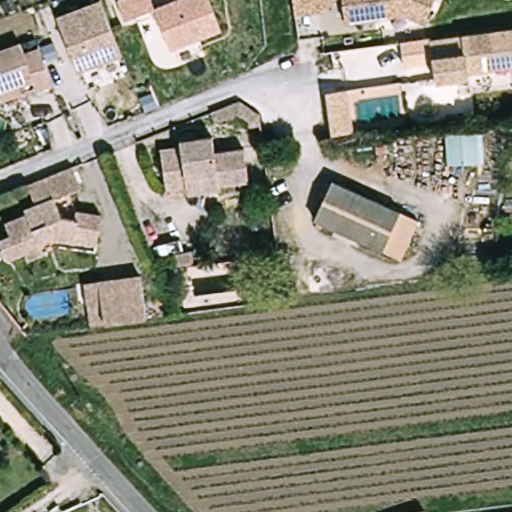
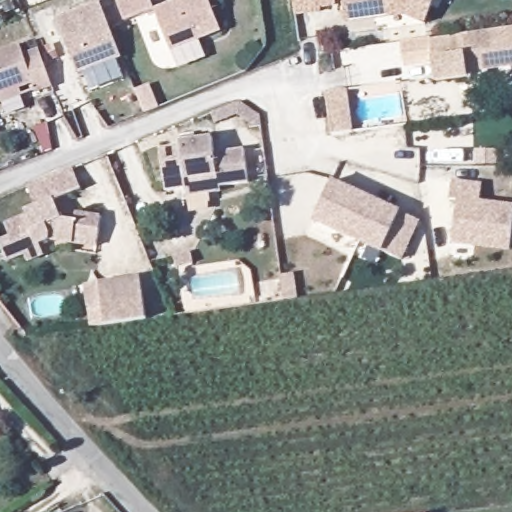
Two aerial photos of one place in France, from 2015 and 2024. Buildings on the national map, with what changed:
unchanged [(121,55),(77,72),(55,17),(99,0),(121,55)]
unchanged [(154,9),(124,20),(117,1),(120,0),(151,0),(154,9)]
unchanged [(220,30),(170,50),(154,9),(178,0),(209,0),(220,30)]
unchanged [(332,3),(317,5),(318,10),(291,13),(290,0),(332,0),(332,3)]
unchanged [(403,13),(379,17),(343,22),(340,0),(431,0),(425,15),(422,23),(403,13)]
unchanged [(512,60),(464,66),(464,71),(432,75),(426,35),(512,25),(512,60)]
unchanged [(5,101),(2,95),(0,96),(0,52),(25,43),(28,54),(43,48),(57,86),(40,91),(37,82),(25,87),(27,93),(5,101)]
unchanged [(347,89),(353,131),(332,134),(327,92),(347,89)]
unchanged [(210,113),(239,102),(260,115),(261,126),(250,127),(249,121),(238,114),(215,123),(210,113)]
demolished [(451,169),(449,133),(480,131),(485,164),(451,169)]
unchanged [(185,147),(184,141),(217,137),(219,153),(249,149),(253,182),(223,186),(224,191),(192,195),(191,188),(170,191),(165,149),(185,147)]
unchanged [(77,168),(85,188),(58,199),(66,218),(79,220),(80,212),(104,216),(100,245),(53,239),(43,243),(48,254),(32,260),(28,253),(12,260),(3,241),(15,237),(10,224),(31,215),(29,210),(40,205),(32,186),(77,168)]
new [(512,229),(509,249),(450,241),(457,200),(449,199),(453,180),(482,184),(480,199),(512,204),(512,229)]
unchanged [(423,221),(405,259),(318,220),(336,182),(423,221)]
unchanged [(293,273),(296,298),(284,300),(280,275),(293,273)]
unchanged [(149,319),(96,326),(94,326),(92,314),(109,312),(105,282),(144,277),(149,319)]

